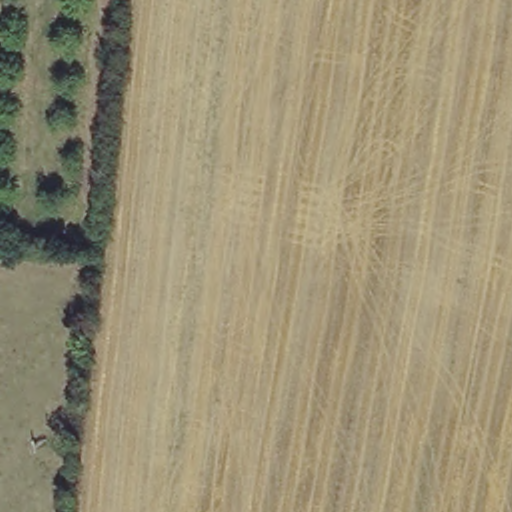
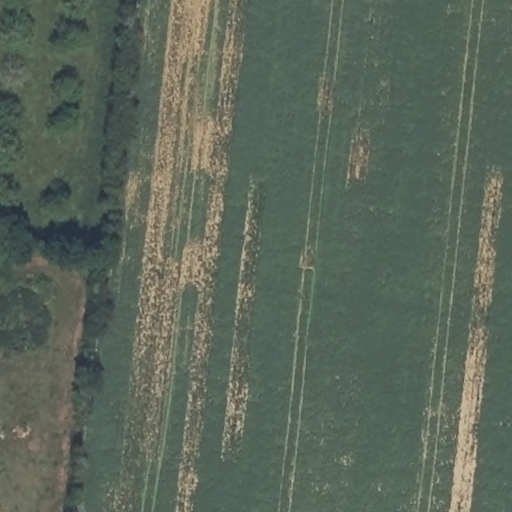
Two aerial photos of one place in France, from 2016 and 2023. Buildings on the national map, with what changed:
[]

